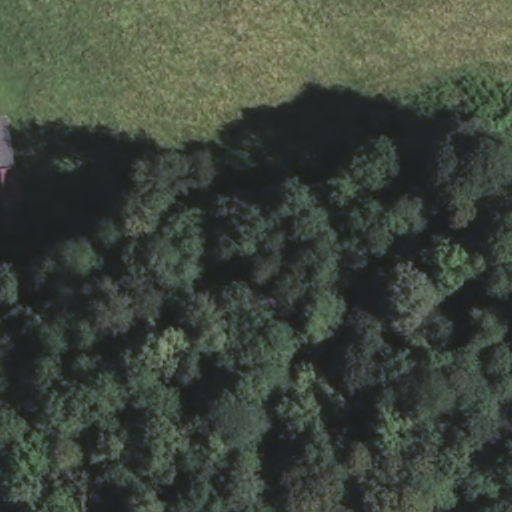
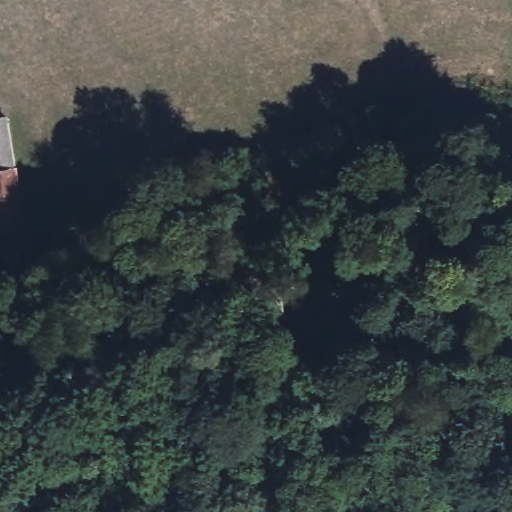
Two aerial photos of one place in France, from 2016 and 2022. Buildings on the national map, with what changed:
unchanged [(25,224),(0,228),(0,118),(5,118),(25,224)]

